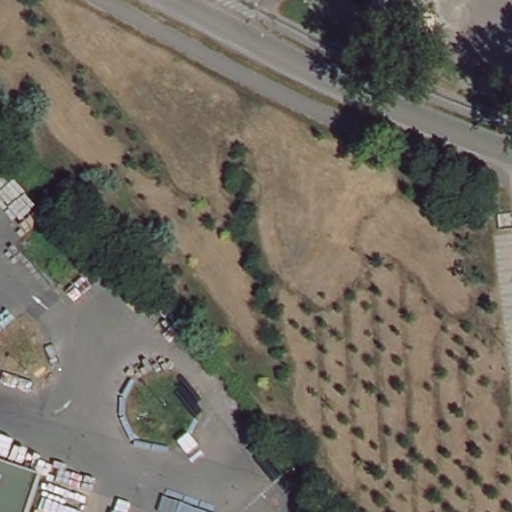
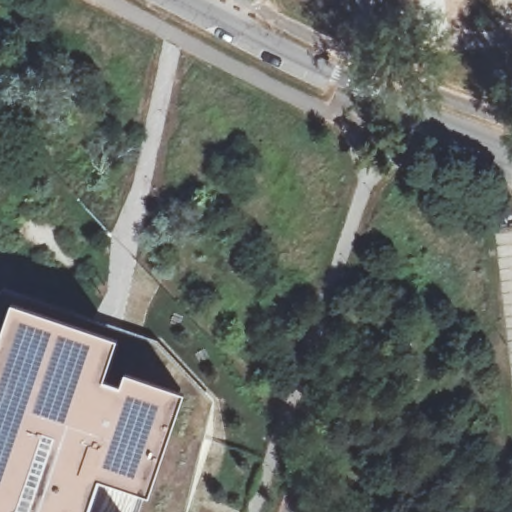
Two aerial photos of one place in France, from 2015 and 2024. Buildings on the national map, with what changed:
new [(158,340),(216,400),(188,512),(179,512),(204,439),(166,426),(171,412),(108,391),(106,398),(63,382),(66,371),(37,361),(50,323),(16,312),(5,344),(0,342),(0,292),(3,288),(158,340)]
new [(204,439),(179,512),(0,512),(0,342),(5,344),(16,312),(50,323),(37,361),(66,371),(63,382),(106,398),(108,391),(171,412),(166,426),(204,439)]
demolished [(35,512),(0,512),(0,462),(46,478),(35,512)]

